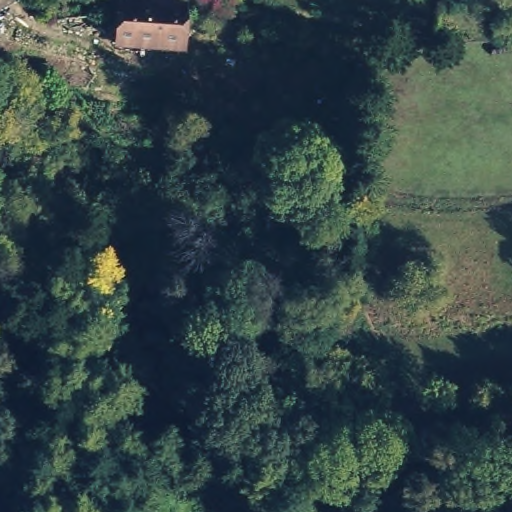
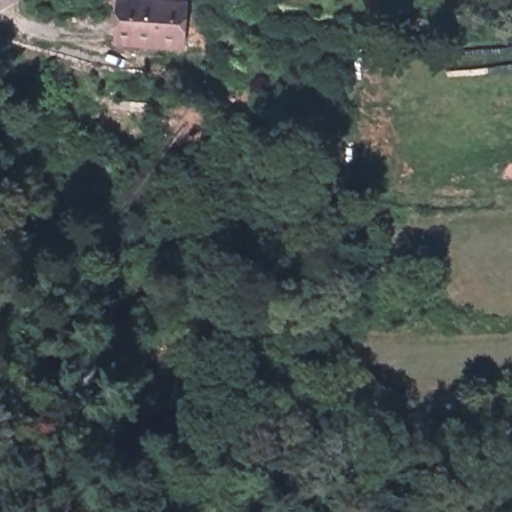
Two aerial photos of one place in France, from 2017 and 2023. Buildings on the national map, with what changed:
unchanged [(182,0),(176,45),(110,36),(115,0),(182,0)]

